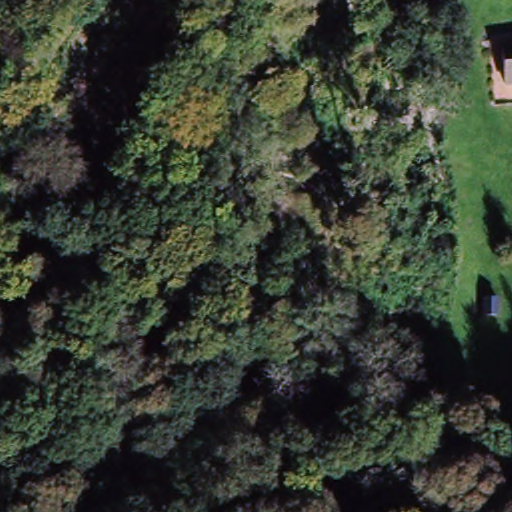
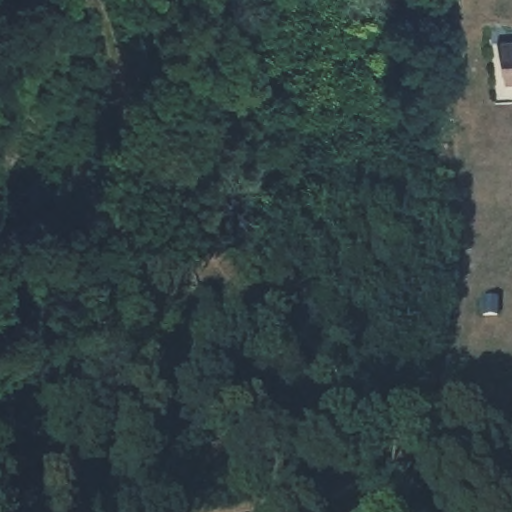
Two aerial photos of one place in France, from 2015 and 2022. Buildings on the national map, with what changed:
unchanged [(504,88),(501,46),(512,46),(512,87),(504,88)]

